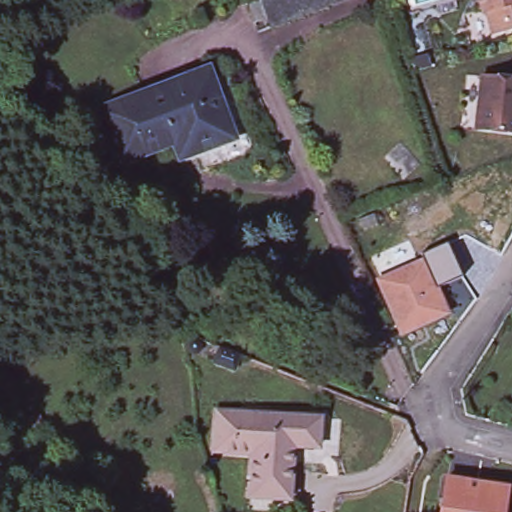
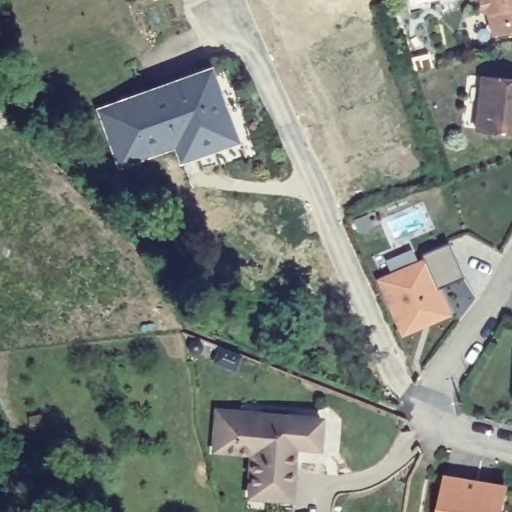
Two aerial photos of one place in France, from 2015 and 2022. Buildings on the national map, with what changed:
unchanged [(269,11),(255,17),(248,0),(325,0),(272,21),(269,11)]
unchanged [(491,13),(482,6),(479,0),(512,0),(512,28),(496,33),(491,13)]
unchanged [(232,134),(193,148),(187,131),(120,156),(100,104),(207,65),(232,134)]
unchanged [(474,126),(480,71),(512,75),(512,130),(474,126)]
unchanged [(446,313),(403,332),(379,281),(423,260),(446,313)]
unchanged [(188,349),(188,347),(188,345),(188,342),(190,340),(191,340),(192,339),(194,338),(196,339),(198,339),(200,341),(201,343),(201,345),(201,347),(201,349),(199,351),(198,352),(196,353),(193,353),(191,352),(190,351),(188,349)]
unchanged [(235,367),(215,361),(220,347),(240,354),(235,367)]
unchanged [(320,414),(318,442),(294,440),(290,494),(250,491),(254,448),(214,445),(217,406),(320,414)]
unchanged [(442,503),(446,479),(477,484),(507,489),(504,512),(441,512),(442,503)]

